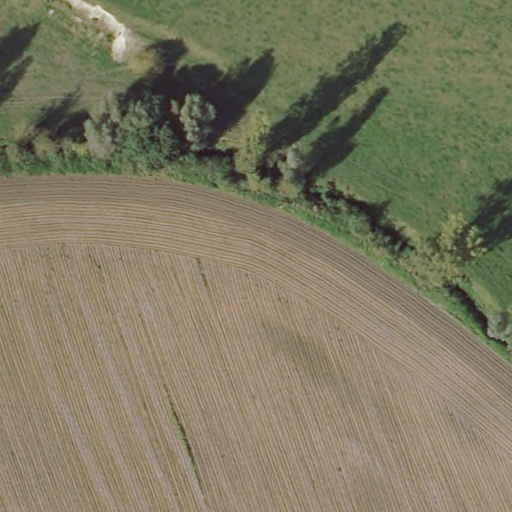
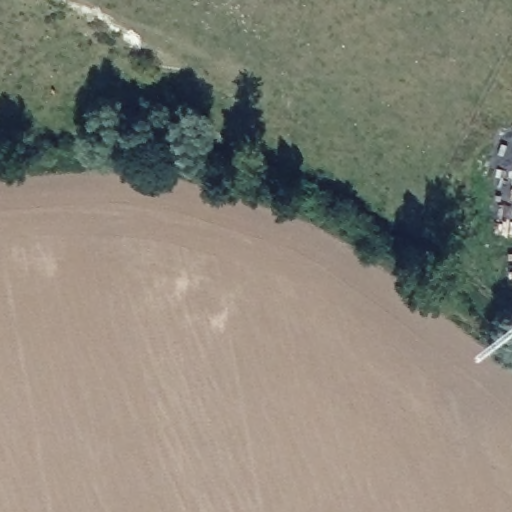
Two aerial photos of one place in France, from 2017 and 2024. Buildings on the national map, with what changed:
[]

